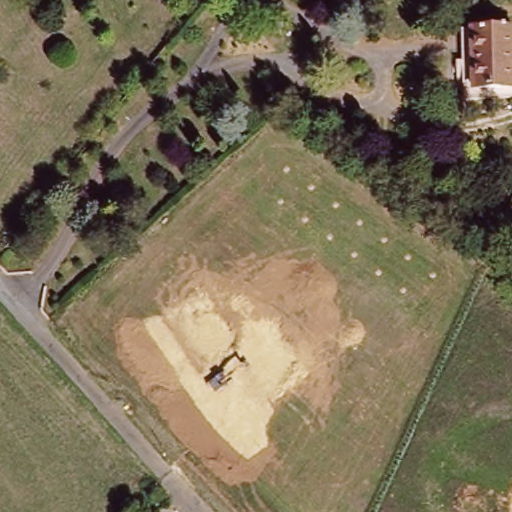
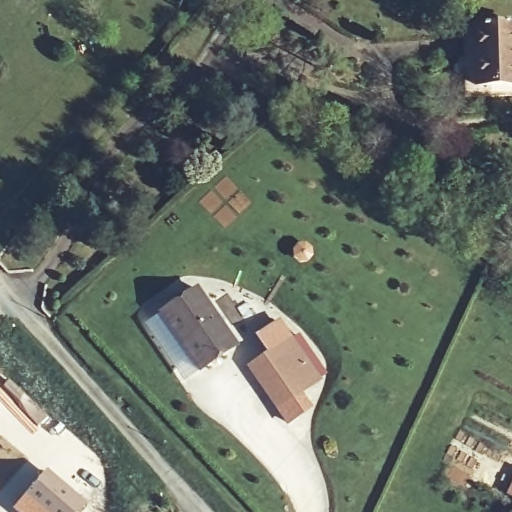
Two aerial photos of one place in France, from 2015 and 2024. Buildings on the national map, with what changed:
unchanged [(512,17),(512,88),(464,89),(463,50),(477,47),(477,17),(512,17)]
new [(198,283),(238,345),(199,372),(158,310),(198,283)]
new [(293,334),(323,379),(278,411),(246,365),(293,334)]
new [(48,467),(88,501),(79,512),(15,512),(10,508),(48,467)]
new [(504,497),(512,481),(512,500),(504,497)]

